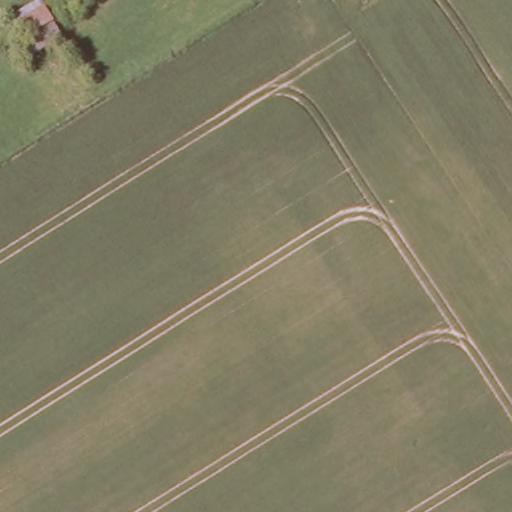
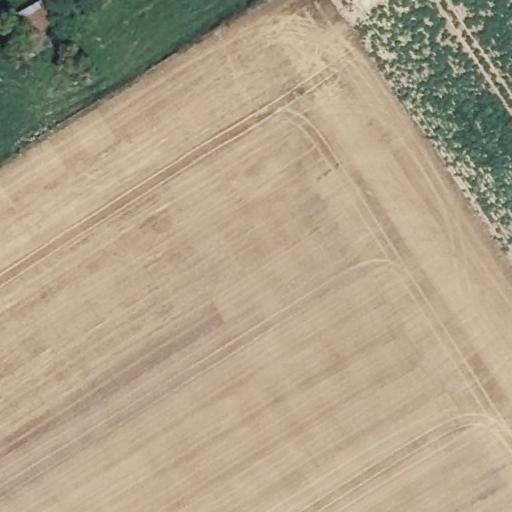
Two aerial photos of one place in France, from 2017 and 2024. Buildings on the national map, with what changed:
unchanged [(23,39),(8,14),(32,0),(42,0),(61,35),(32,52),(22,59),(13,45),(23,39)]

